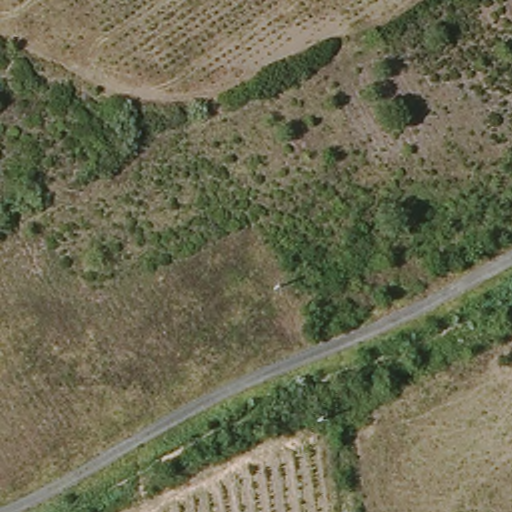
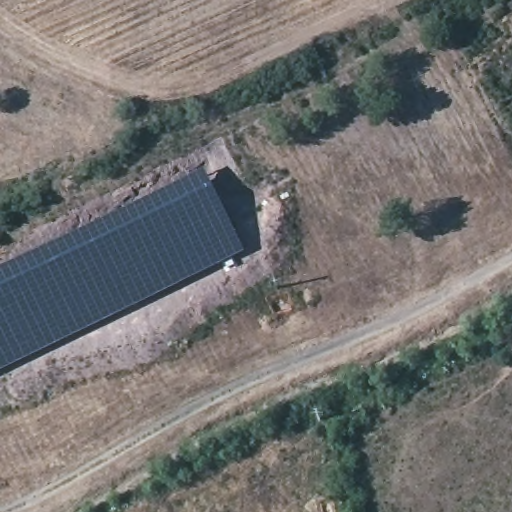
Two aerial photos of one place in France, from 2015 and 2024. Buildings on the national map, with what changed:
new [(245,254),(192,282),(57,347),(0,377),(0,269),(205,168),(245,254)]

